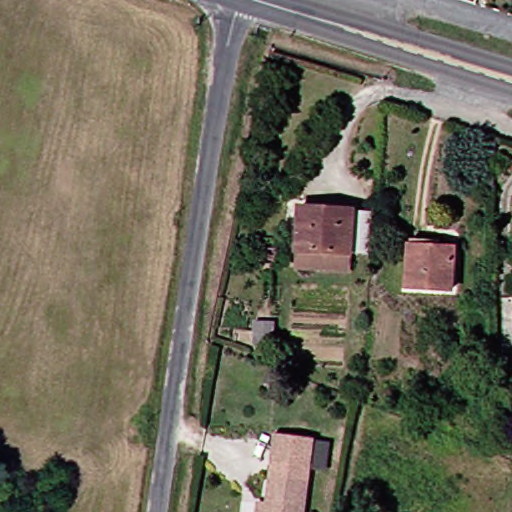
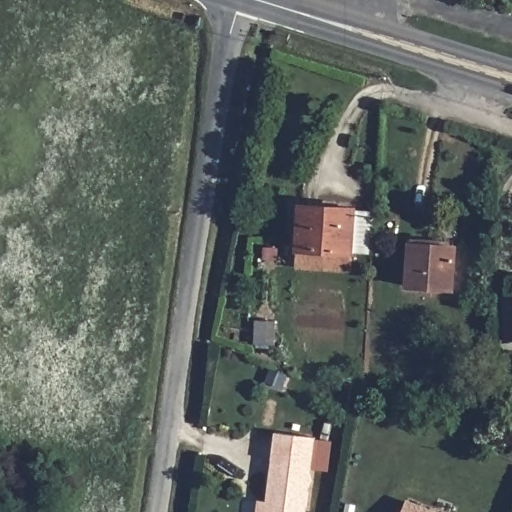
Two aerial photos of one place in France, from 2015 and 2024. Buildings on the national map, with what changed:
unchanged [(306,266),(311,206),(346,209),(380,212),(376,252),(359,252),(358,271),(306,266)]
unchanged [(457,288),(412,287),(414,245),(459,247),(457,288)]
unchanged [(265,342),(254,341),(256,320),(266,321),(274,322),(273,342),(265,342)]
unchanged [(315,512),(273,512),(274,511),(279,475),(281,460),(284,432),(324,437),(315,512)]
new [(430,512),(402,512),(406,502),(430,512)]

